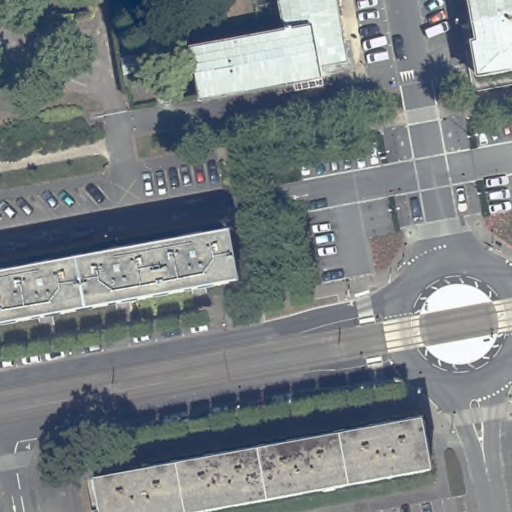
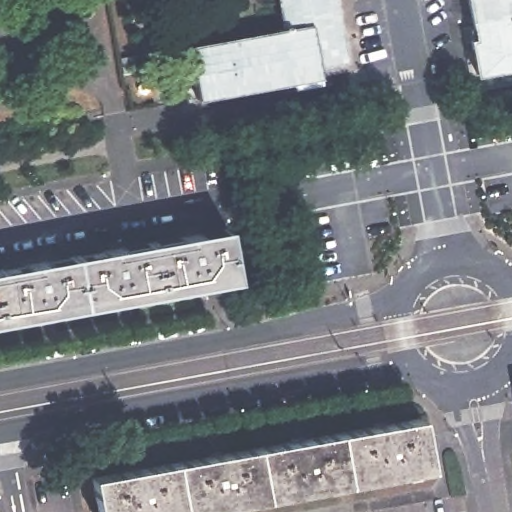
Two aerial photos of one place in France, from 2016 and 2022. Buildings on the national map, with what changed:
unchanged [(294,83),(200,99),(191,48),(287,32),(282,0),(339,0),(349,61),(322,66),(323,78),(325,86),(295,91),(294,83)]
unchanged [(468,0),(512,0),(512,14),(472,20),(468,0)]
unchanged [(472,40),(475,39),(472,20),(512,14),(512,68),(479,74),(472,40)]
unchanged [(238,282),(0,325),(0,274),(229,232),(238,282)]
unchanged [(95,479),(128,474),(141,471),(211,459),(224,456),(296,442),(310,439),(378,427),(391,424),(423,418),(423,419),(427,443),(432,467),(198,512),(102,512),(95,479)]

